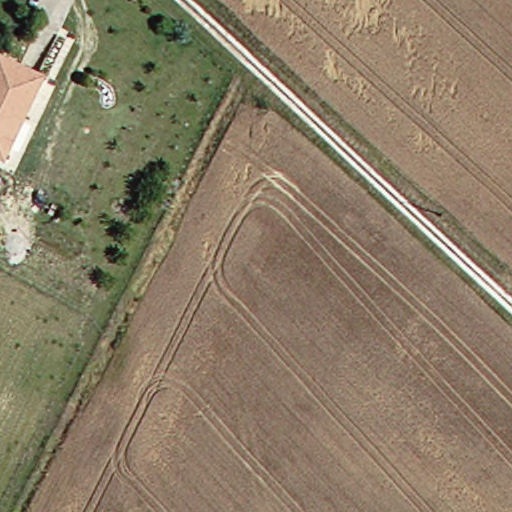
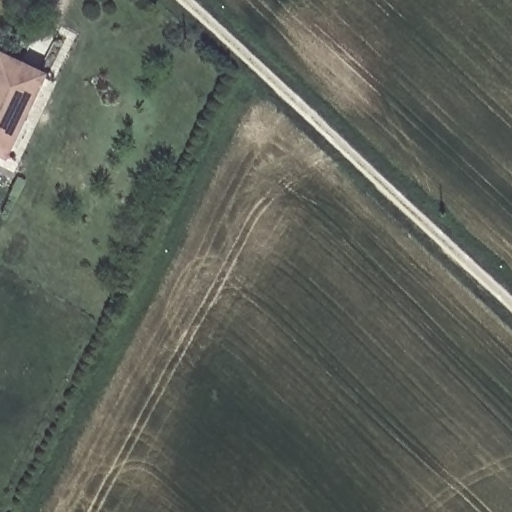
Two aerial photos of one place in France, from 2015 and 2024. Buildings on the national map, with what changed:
unchanged [(2,48),(47,72),(4,155),(0,153),(0,52),(2,48)]

